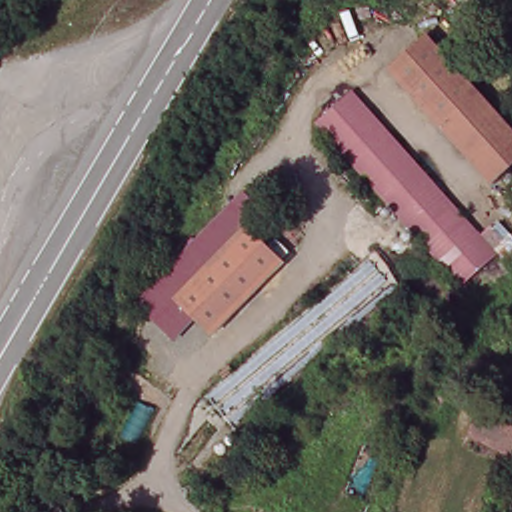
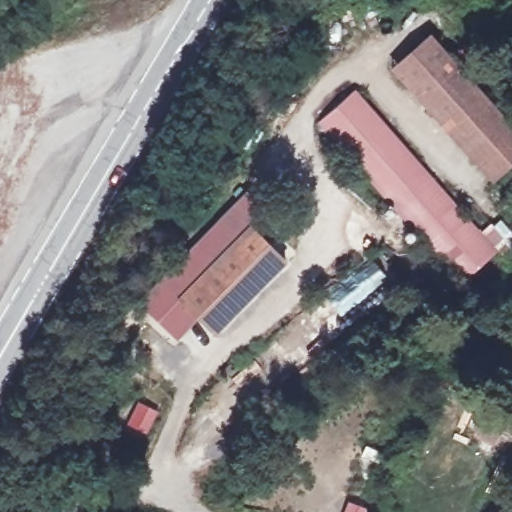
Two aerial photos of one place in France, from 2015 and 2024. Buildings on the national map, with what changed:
unchanged [(512,132),(512,164),(490,183),(390,71),(427,38),(512,132)]
unchanged [(496,251),(463,284),(327,135),(316,123),(345,96),(351,90),(496,251)]
unchanged [(243,223),(268,247),(280,258),(246,294),(211,332),(174,297),(243,223)]
unchanged [(400,286),(237,427),(207,393),(372,255),(400,286)]
unchanged [(472,434),(491,400),(512,412),(512,456),(472,434)]
unchanged [(496,512),(491,512),(492,510),(496,512)]

